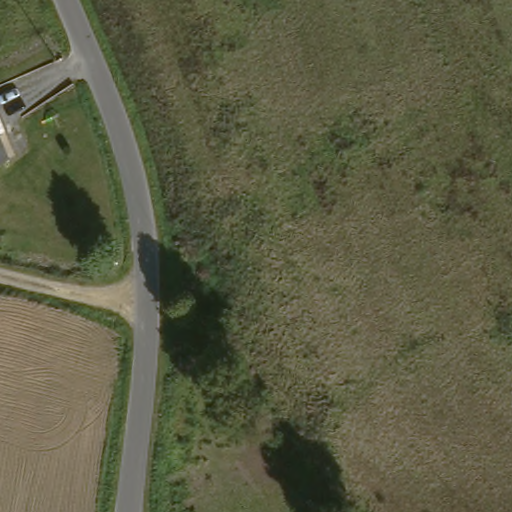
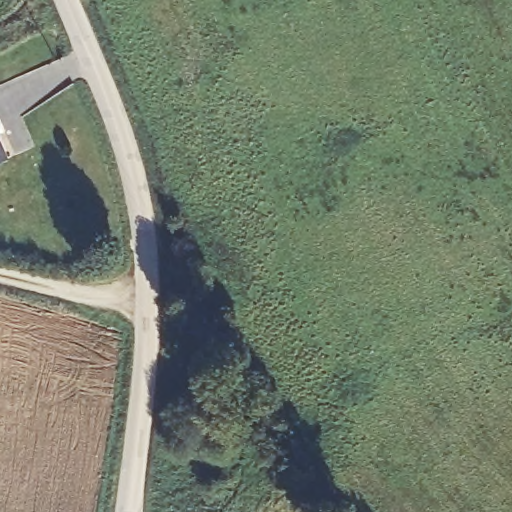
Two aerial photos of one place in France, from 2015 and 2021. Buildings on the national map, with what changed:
unchanged [(16,151),(0,157),(0,114),(16,151)]

